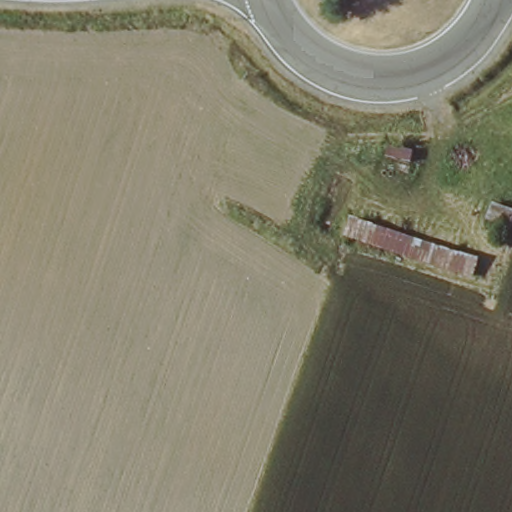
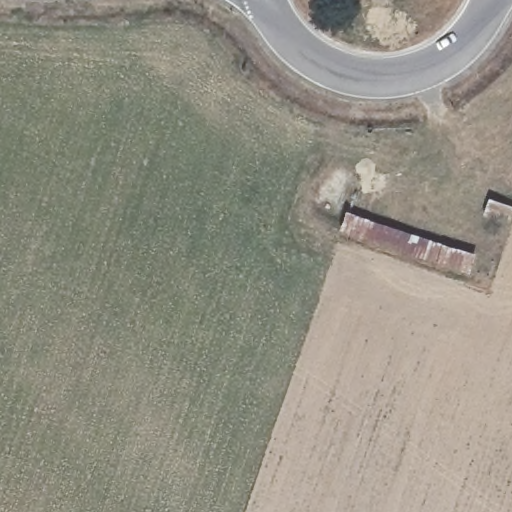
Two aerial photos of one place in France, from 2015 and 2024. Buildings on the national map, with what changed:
[]

